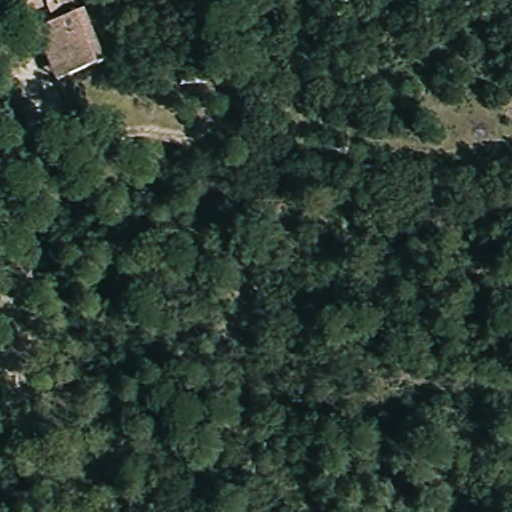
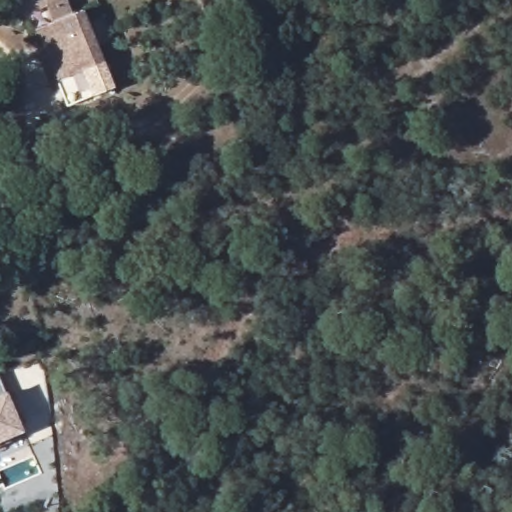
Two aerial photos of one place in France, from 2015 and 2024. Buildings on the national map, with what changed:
unchanged [(52,23),(43,6),(18,19),(7,0),(67,0),(74,12),(83,8),(99,40),(107,57),(98,62),(63,79),(51,86),(26,36),(38,30),(52,23)]
new [(6,391),(24,432),(0,443),(0,383),(3,392),(6,391)]

